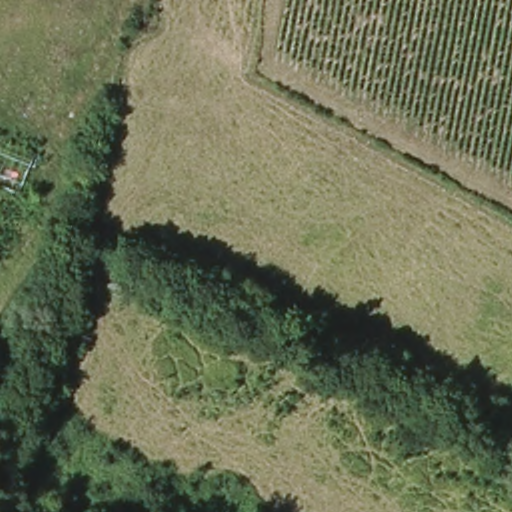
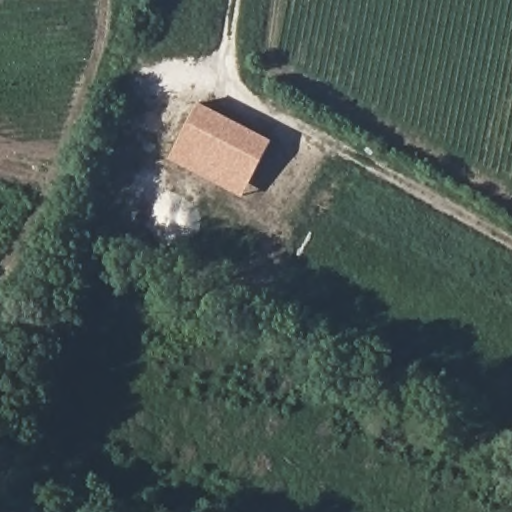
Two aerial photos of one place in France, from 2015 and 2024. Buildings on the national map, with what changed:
new [(169,159),(199,102),(272,140),(242,196),(169,159)]

